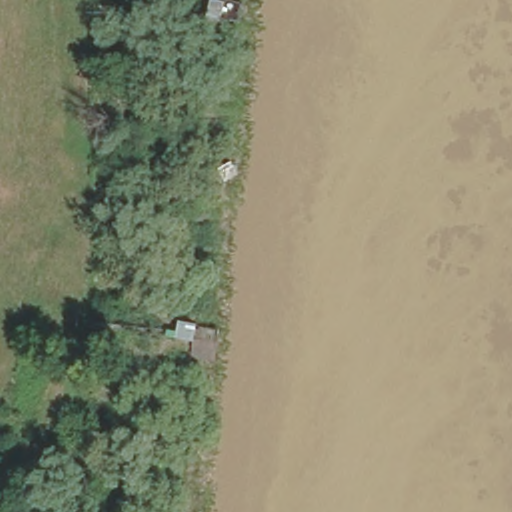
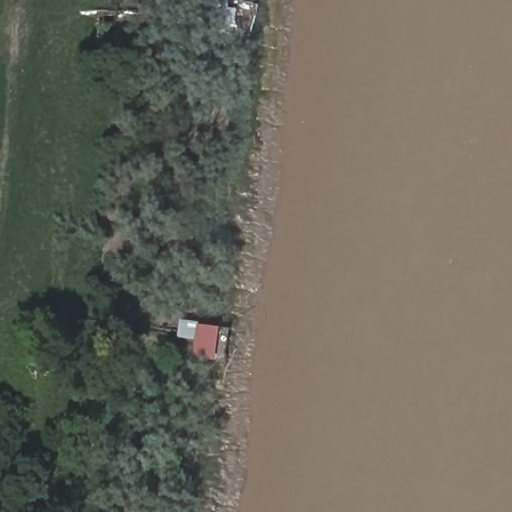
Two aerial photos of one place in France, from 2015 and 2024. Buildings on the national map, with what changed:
unchanged [(239,2),(238,18),(218,18),(219,2),(239,2)]
unchanged [(224,185),(204,183),(206,164),(227,166),(224,185)]
unchanged [(202,338),(173,334),(176,318),(203,315),(202,338)]

